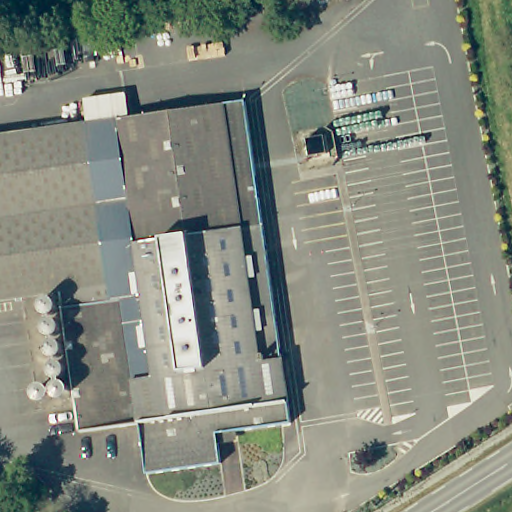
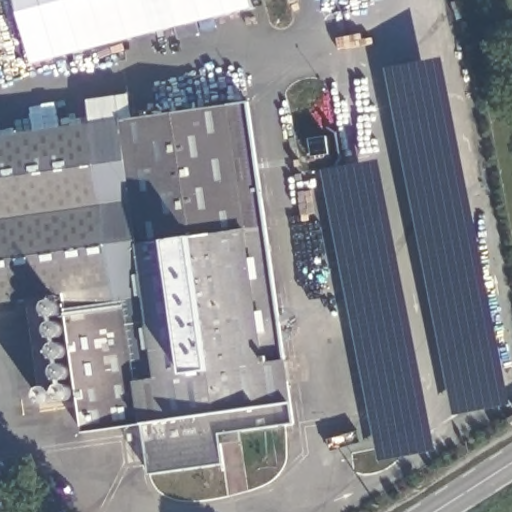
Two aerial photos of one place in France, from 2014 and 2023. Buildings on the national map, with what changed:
new [(31,63),(15,0),(249,0),(251,7),(31,63)]
unchanged [(218,451),(220,470),(145,479),(139,431),(79,435),(72,371),(65,298),(46,128),(94,123),(91,101),(133,96),(135,118),(253,105),(290,429),(239,435),(240,448),(218,451)]
unchanged [(0,305),(0,133),(46,128),(65,298),(0,305)]
unchanged [(512,405),(512,412),(509,407),(512,405)]

